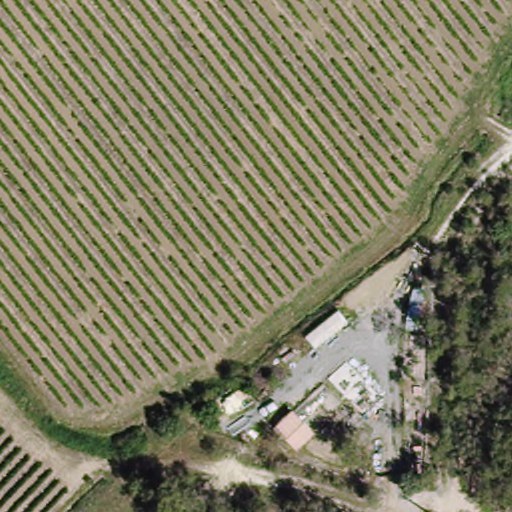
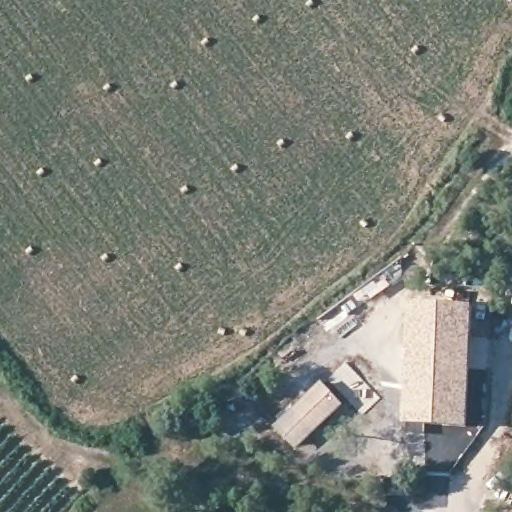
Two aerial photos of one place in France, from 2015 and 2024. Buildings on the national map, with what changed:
new [(473,305),(468,426),(404,423),(410,302),(473,305)]
new [(345,362),(380,398),(360,416),(327,379),(345,362)]
demolished [(357,400),(343,405),(332,377),(346,372),(357,400)]
new [(322,381),(325,385),(341,401),(345,405),(296,450),(275,426),(322,381)]

